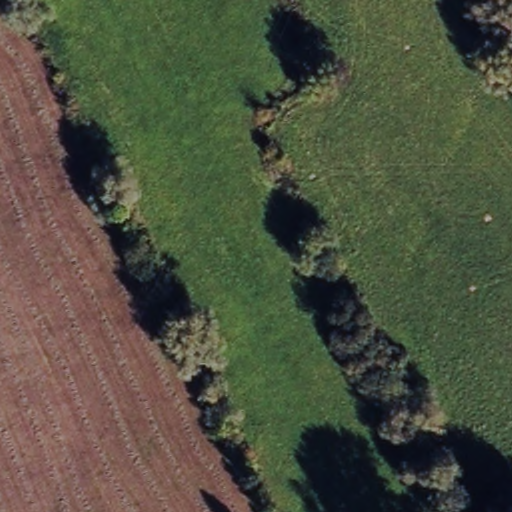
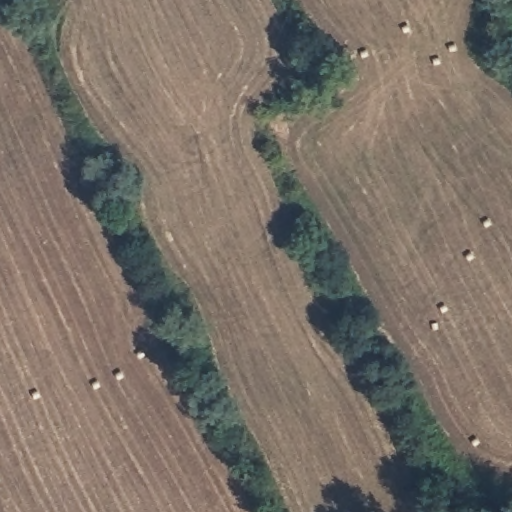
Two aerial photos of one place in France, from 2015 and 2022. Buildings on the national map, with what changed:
[]

